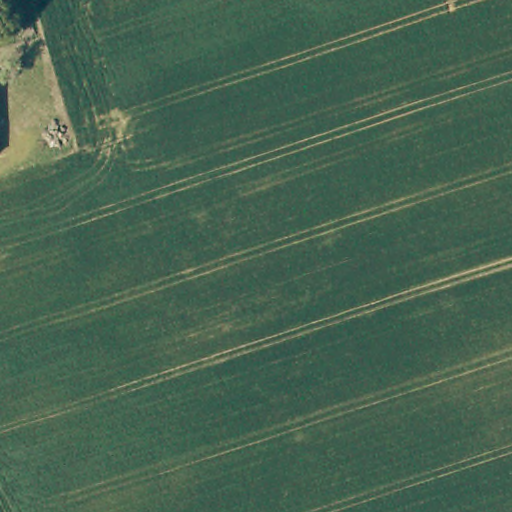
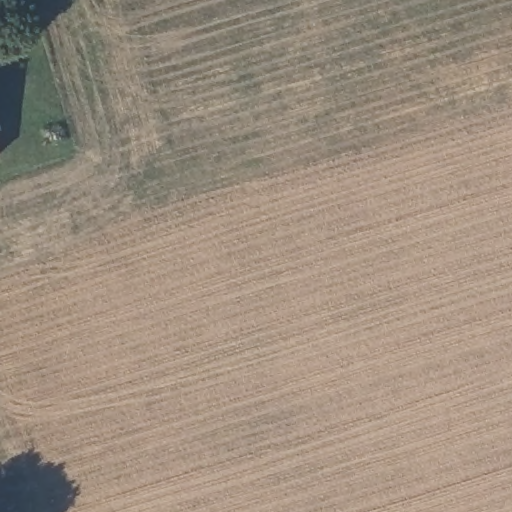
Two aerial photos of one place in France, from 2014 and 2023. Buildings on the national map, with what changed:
[]

